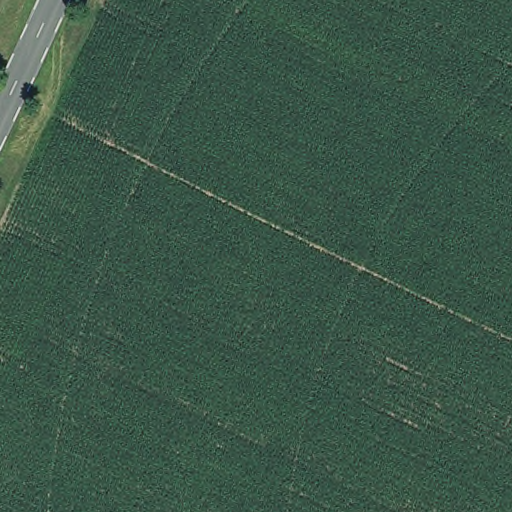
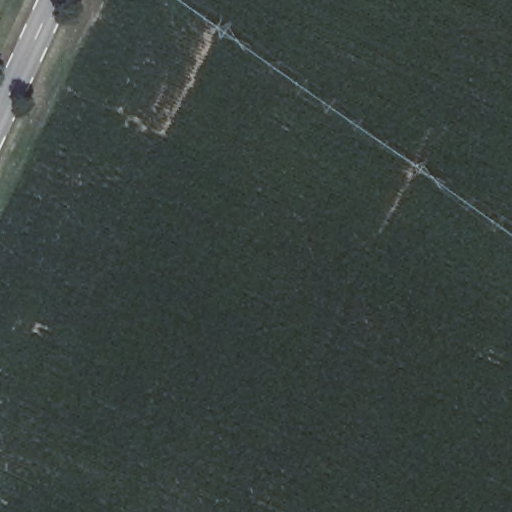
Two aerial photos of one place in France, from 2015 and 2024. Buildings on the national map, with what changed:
[]

